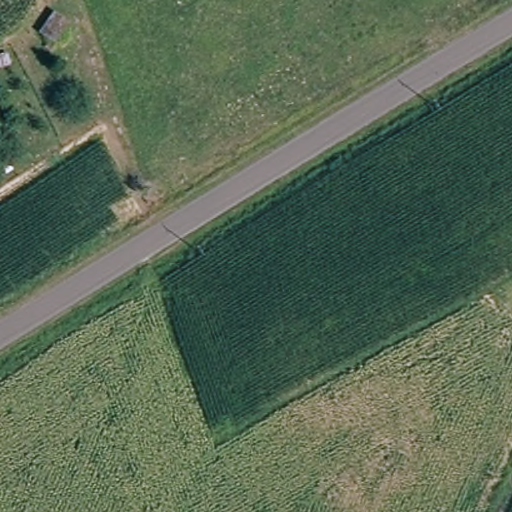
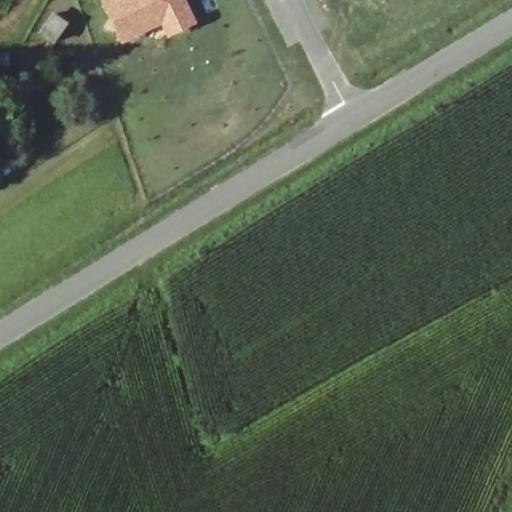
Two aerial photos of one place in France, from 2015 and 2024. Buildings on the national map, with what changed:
new [(167,38),(160,25),(122,43),(101,0),(186,0),(197,22),(167,38)]
new [(52,10),(69,22),(52,45),(37,34),(52,10)]

